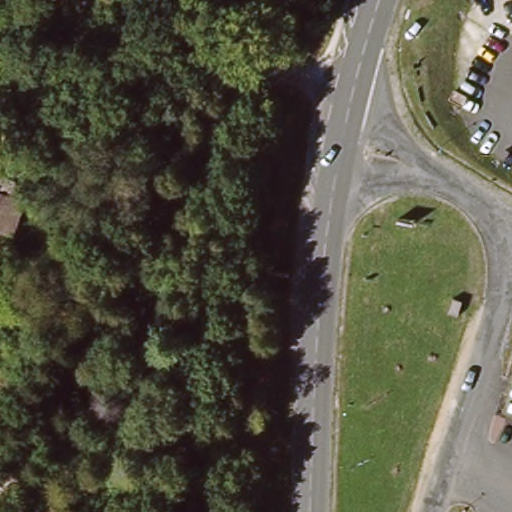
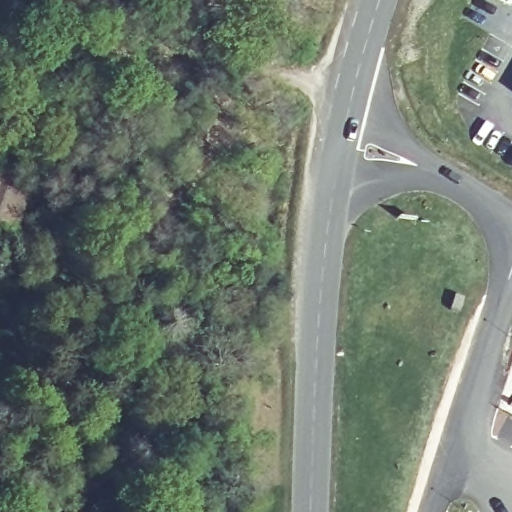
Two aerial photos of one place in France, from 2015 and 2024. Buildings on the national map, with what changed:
unchanged [(19,252),(0,245),(0,170),(2,165),(31,175),(27,189),(39,194),(19,252)]
unchanged [(457,289),(453,304),(443,301),(448,286),(457,289)]

